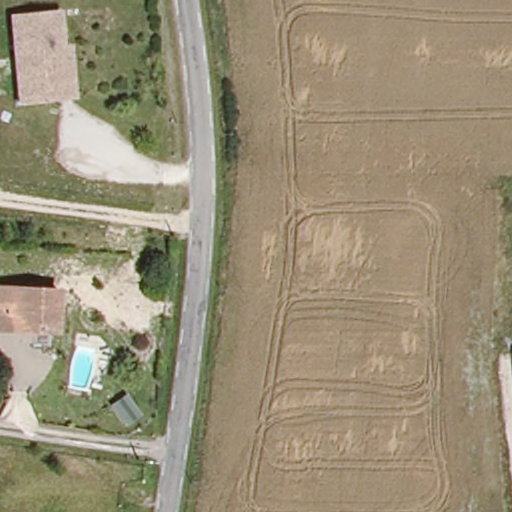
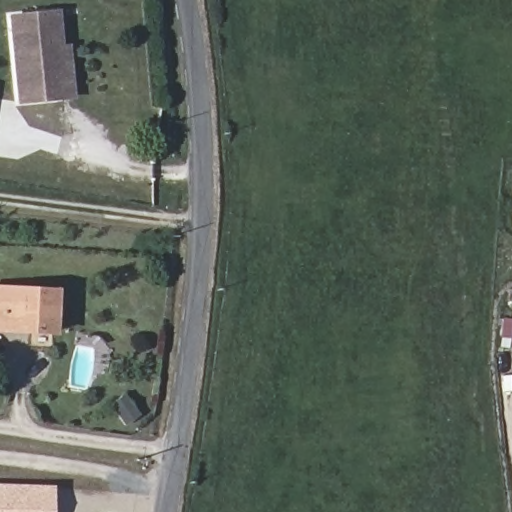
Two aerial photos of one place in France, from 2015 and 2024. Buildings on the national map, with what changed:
unchanged [(48,90),(10,94),(0,17),(0,13),(47,8),(51,44),(59,43),(64,89),(48,90)]
unchanged [(34,329),(0,327),(0,289),(5,290),(59,291),(57,330),(34,329)]
new [(0,512),(0,484),(54,485),(53,512),(0,512)]

